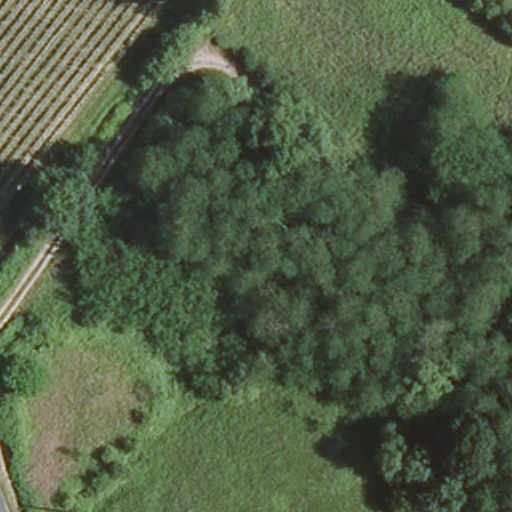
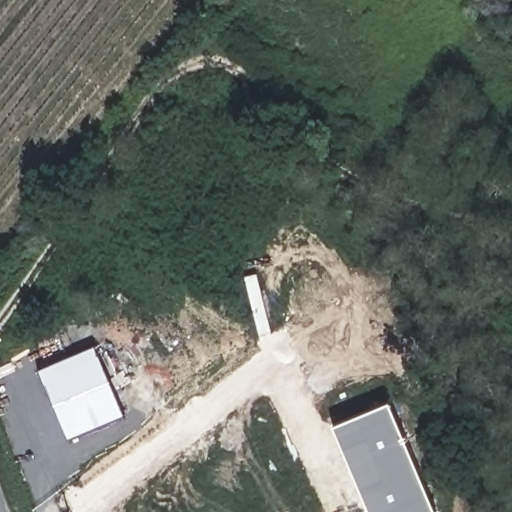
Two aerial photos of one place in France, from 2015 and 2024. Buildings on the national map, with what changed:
new [(68,439),(38,370),(94,346),(124,415),(68,439)]
new [(431,512),(371,512),(336,427),(387,406),(431,512)]

